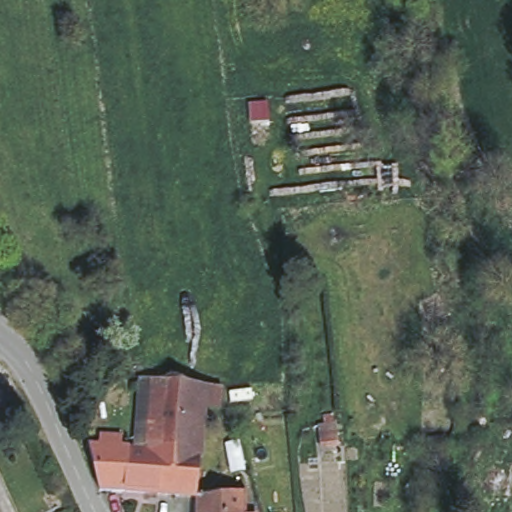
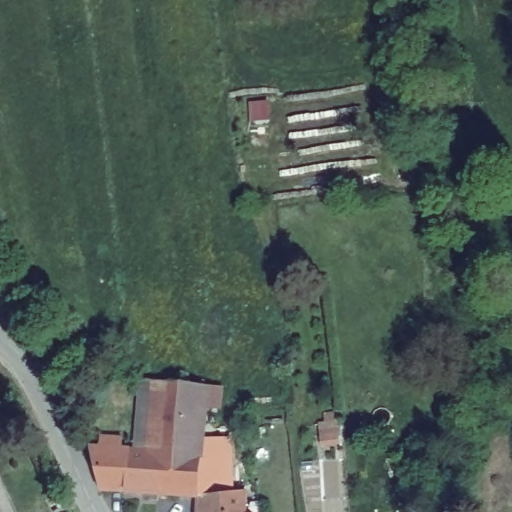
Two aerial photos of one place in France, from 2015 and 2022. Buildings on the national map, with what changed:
unchanged [(158,380),(194,383),(191,419),(155,417),(158,380)]
unchanged [(104,491),(95,447),(105,447),(105,438),(127,439),(127,448),(153,450),(155,417),(191,419),(194,383),(210,385),(209,415),(205,457),(200,495),(199,495),(182,495),(162,494),(104,491)]
unchanged [(337,423),(337,437),(322,437),(321,423),(337,423)]
unchanged [(445,435),(445,447),(430,448),(429,435),(445,435)]
unchanged [(250,490),(250,512),(200,512),(199,495),(200,495),(250,490)]

